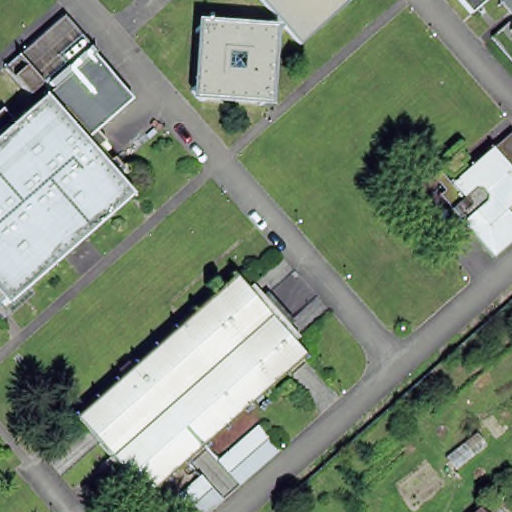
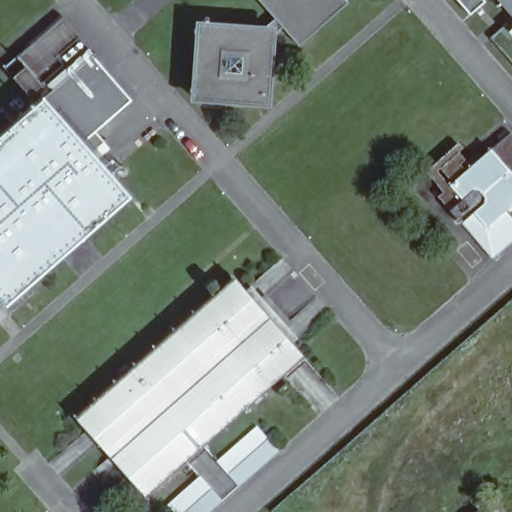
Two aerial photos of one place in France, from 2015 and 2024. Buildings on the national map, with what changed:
unchanged [(348,1),(299,45),(283,26),(274,34),(274,35),(270,97),(261,105),(198,100),(190,91),(194,29),(204,21),(266,25),(267,25),(276,17),(261,0),(346,0),(348,1)]
unchanged [(485,5),(469,19),(453,0),(480,0),(485,5)]
unchanged [(512,19),(495,0),(512,0),(512,19)]
unchanged [(41,99),(4,70),(66,20),(129,101),(83,142),(130,200),(0,309),(0,136),(41,99)]
unchanged [(512,33),(512,38),(509,35),(512,33)]
unchanged [(511,131),(512,133),(512,173),(491,149),(511,131)]
unchanged [(462,198),(450,185),(491,149),(512,173),(512,201),(504,209),(512,218),(512,241),(493,258),(461,222),(449,209),(462,198)]
unchanged [(451,179),(439,167),(457,151),(464,160),(459,164),(463,168),(451,179)]
unchanged [(245,290),(256,303),(279,329),(291,342),(303,355),(144,496),(98,443),(86,430),(74,416),(174,328),(171,325),(189,308),(193,312),(233,276),(245,290)]
unchanged [(206,285),(211,280),(216,285),(211,290),(206,285)]
unchanged [(296,381),(289,387),(284,382),(291,376),(296,381)]
unchanged [(239,484),(218,460),(257,426),(278,450),(239,484)]
unchanged [(175,512),(168,504),(199,476),(221,500),(207,512),(175,512)]
unchanged [(477,512),(479,510),(481,512),(477,512)]

